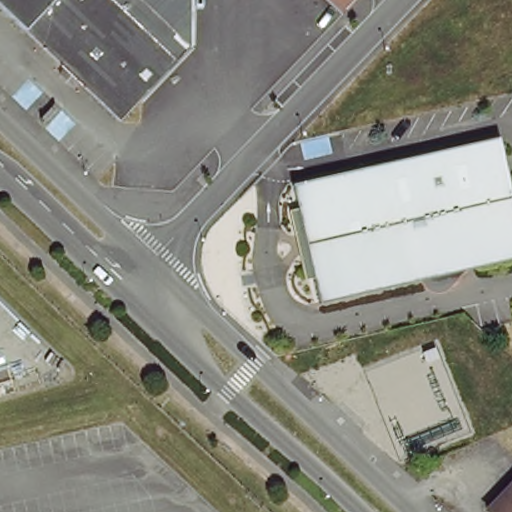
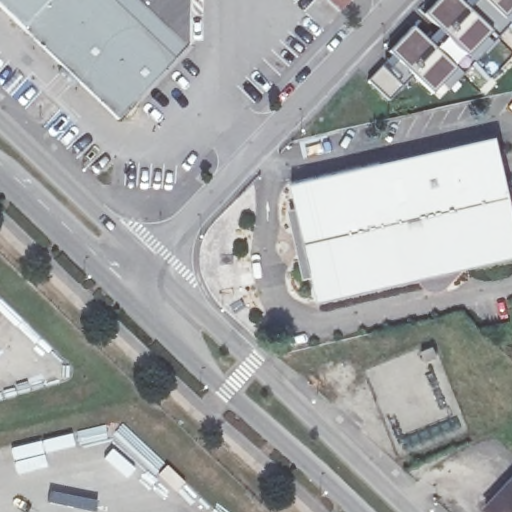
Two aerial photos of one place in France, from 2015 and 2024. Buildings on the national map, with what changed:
unchanged [(186,46),(120,123),(0,7),(0,0),(191,0),(186,46)]
unchanged [(341,11),(330,0),(351,0),(341,11)]
new [(392,54),(415,29),(432,45),(443,32),(426,15),(442,0),(459,0),(469,9),(477,0),(512,0),(512,10),(432,94),(414,75),(391,100),(371,81),(392,54)]
unchanged [(315,304),(286,185),(498,137),(512,200),(512,202),(395,228),(407,282),(315,304)]
unchanged [(395,228),(512,202),(512,258),(407,282),(395,228)]
unchanged [(512,479),(512,512),(484,512),(482,511),(512,479)]

